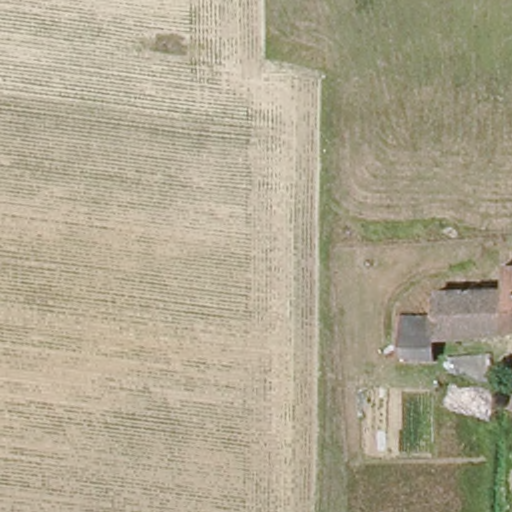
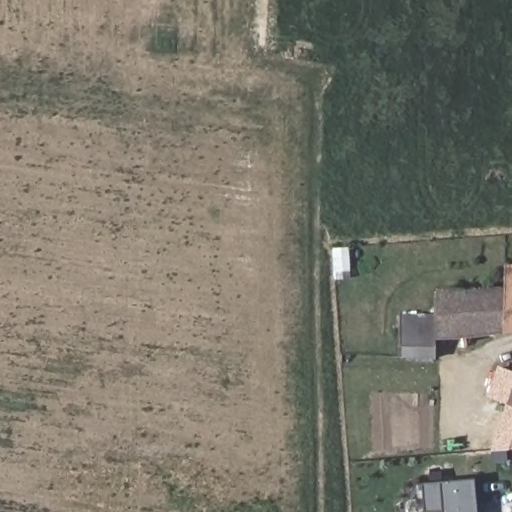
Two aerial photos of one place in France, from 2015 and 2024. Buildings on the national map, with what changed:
unchanged [(432,315),(433,292),(500,294),(501,266),(512,266),(512,330),(431,338),(431,358),(397,358),(398,315),(432,315)]
new [(506,448),(507,460),(494,461),(492,451),(507,403),(487,397),(497,365),(511,369),(510,374),(512,375),(512,396),(510,402),(512,403),(512,448),(506,448)]
unchanged [(510,374),(512,367),(512,375),(510,374)]
unchanged [(510,402),(512,396),(512,403),(510,402)]
new [(472,478),(476,512),(425,512),(422,483),(472,478)]

